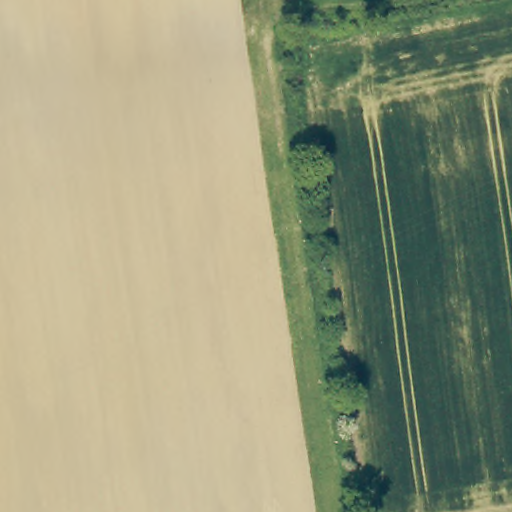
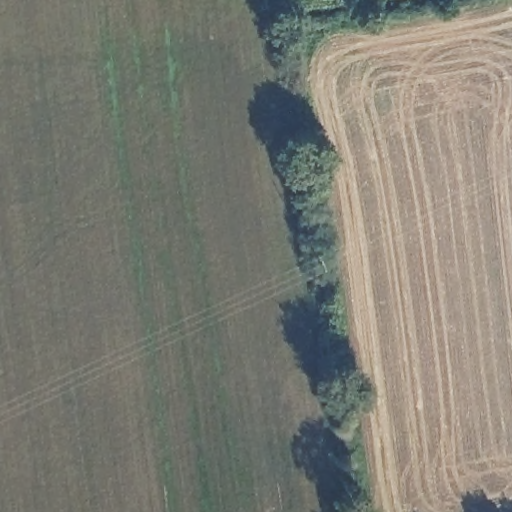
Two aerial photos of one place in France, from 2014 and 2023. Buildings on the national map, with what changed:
[]

